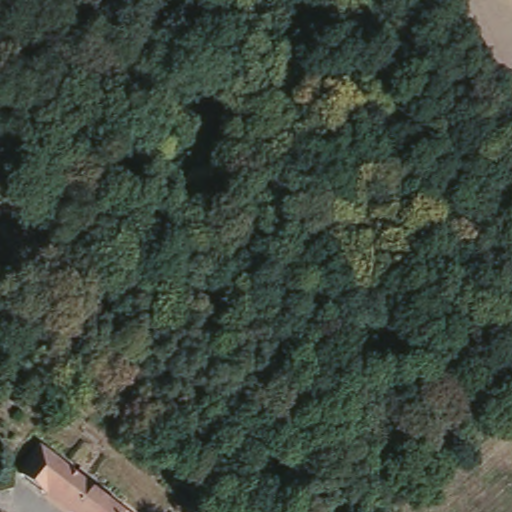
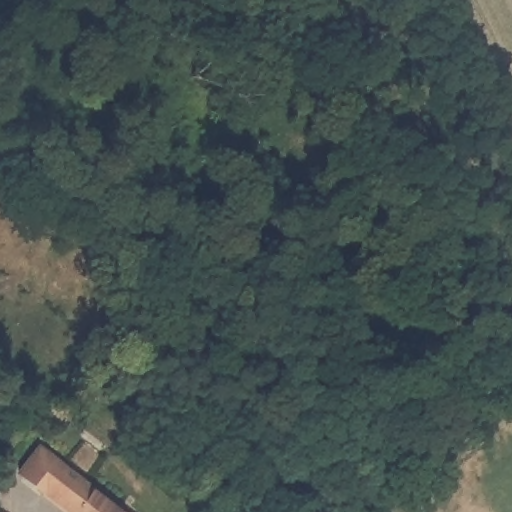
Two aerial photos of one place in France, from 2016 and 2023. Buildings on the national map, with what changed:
unchanged [(95,434),(110,445),(99,460),(83,449),(95,434)]
unchanged [(40,487),(14,467),(34,441),(62,462),(44,483),(40,487)]
unchanged [(62,462),(128,512),(83,512),(44,483),(62,462)]

